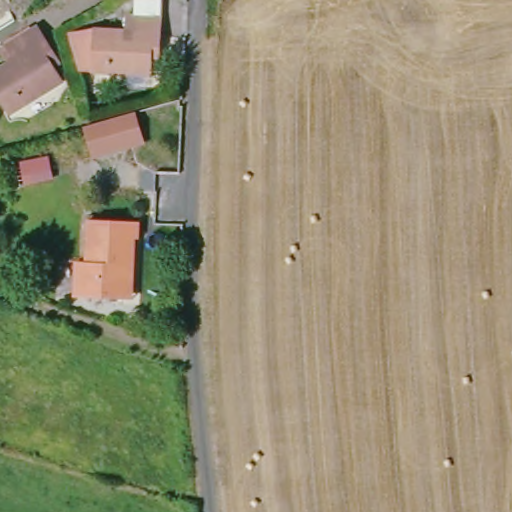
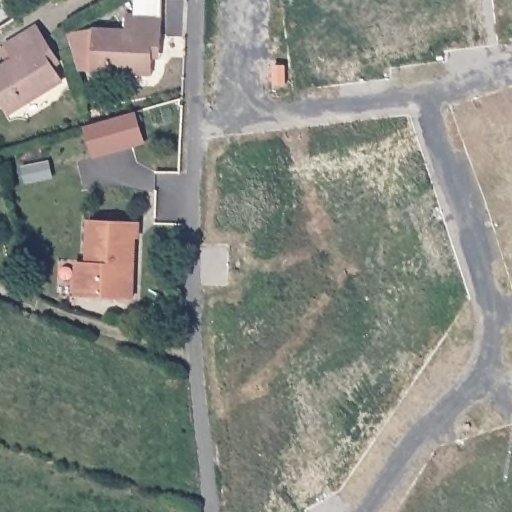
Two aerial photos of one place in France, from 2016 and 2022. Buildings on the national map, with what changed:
unchanged [(149,74),(91,71),(91,70),(92,28),(122,30),(122,14),(123,0),(159,0),(159,16),(158,59),(149,59),(149,74)]
unchanged [(92,28),(91,70),(72,69),(60,24),(92,28)]
unchanged [(0,108),(0,68),(10,62),(2,48),(32,31),(55,69),(49,73),(57,86),(5,116),(0,108)]
unchanged [(96,161),(87,129),(139,115),(148,145),(96,161)]
unchanged [(56,179),(28,187),(28,190),(20,193),(13,164),(50,156),(56,179)]
unchanged [(122,300),(85,296),(72,295),(74,261),(87,261),(92,221),(139,224),(137,239),(135,242),(133,271),(130,301),(122,300)]

